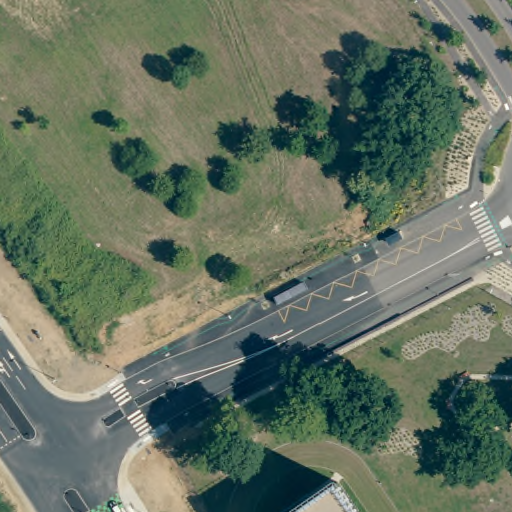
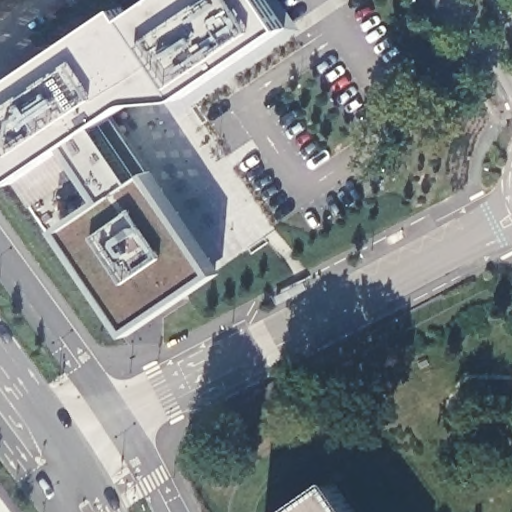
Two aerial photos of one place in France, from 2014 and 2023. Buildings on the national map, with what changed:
new [(133,100),(101,121),(138,180),(152,170),(222,273),(132,334),(62,230),(108,199),(75,143),(17,183),(0,158),(0,90),(123,5),(132,16),(154,0),(271,0),(288,25),(186,97),(133,100)]
unchanged [(340,482),(360,512),(294,512),(340,482)]

